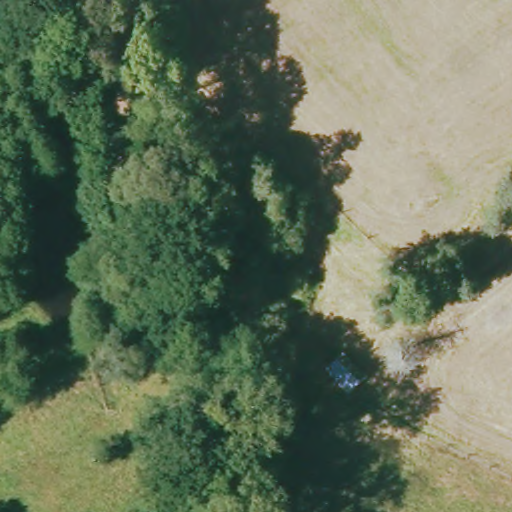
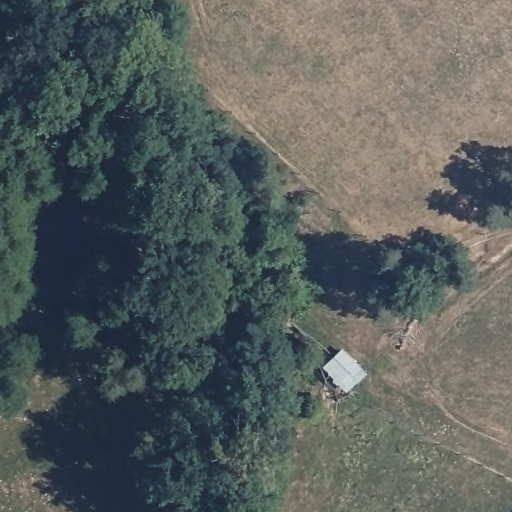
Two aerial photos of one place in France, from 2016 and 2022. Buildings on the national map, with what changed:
unchanged [(370,376),(353,396),(327,374),(345,350),(370,376)]

